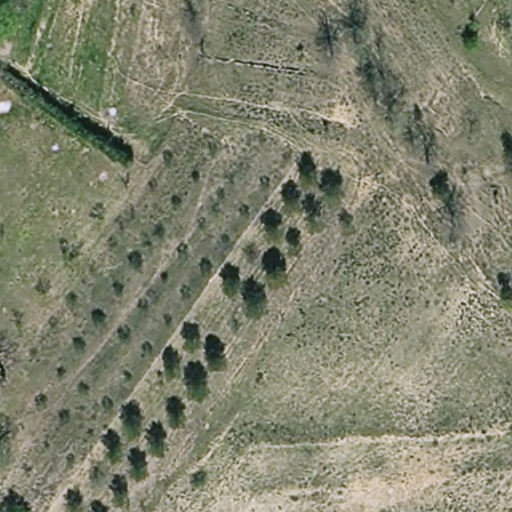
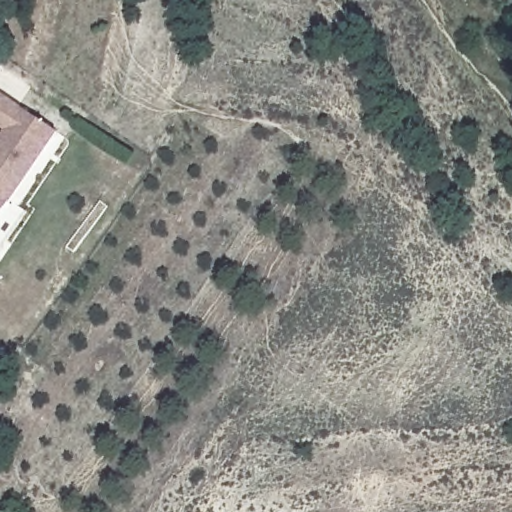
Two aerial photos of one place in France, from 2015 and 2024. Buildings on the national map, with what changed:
new [(0,138),(5,131),(0,127),(0,93),(59,134),(0,219),(0,138)]

